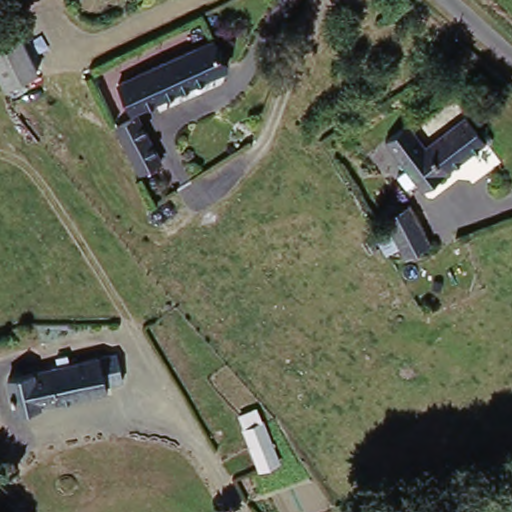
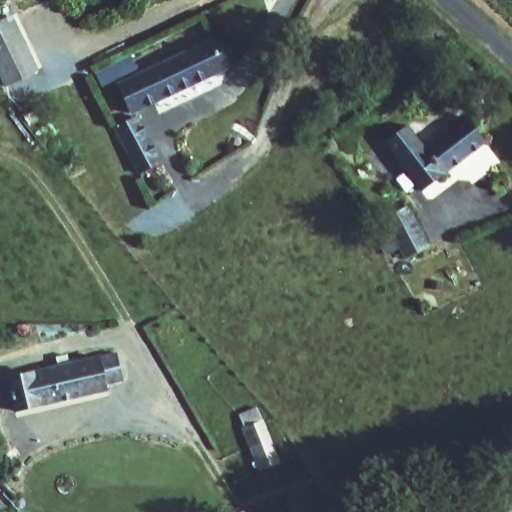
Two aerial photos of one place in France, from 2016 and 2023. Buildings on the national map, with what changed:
unchanged [(43,73),(10,88),(0,66),(0,28),(17,19),(43,73)]
unchanged [(216,41),(230,69),(136,114),(123,85),(216,41)]
unchanged [(409,123),(427,145),(467,114),(487,140),(423,188),(385,140),(409,123)]
unchanged [(142,117),(164,161),(142,174),(119,128),(142,117)]
unchanged [(415,208),(434,246),(409,259),(391,221),(415,208)]
unchanged [(118,350),(124,378),(107,381),(109,387),(17,408),(8,375),(118,350)]
unchanged [(261,406),(278,447),(259,454),(242,413),(261,406)]

